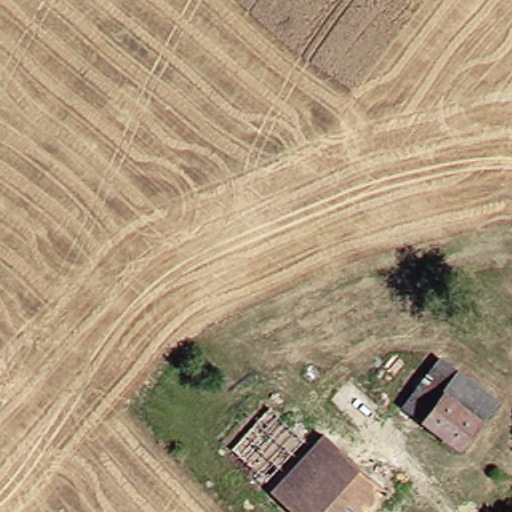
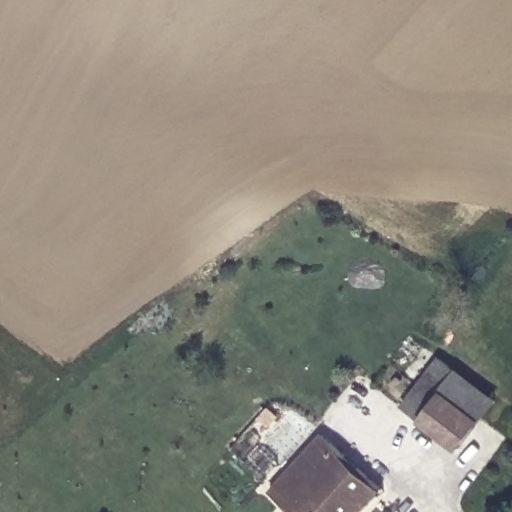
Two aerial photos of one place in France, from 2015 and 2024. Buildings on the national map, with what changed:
unchanged [(458,433),(421,404),(445,374),(482,403),(458,433)]
unchanged [(268,479),(232,445),(271,409),(304,442),(268,479)]
unchanged [(299,512),(270,486),(325,432),(383,485),(358,512),(299,512)]

